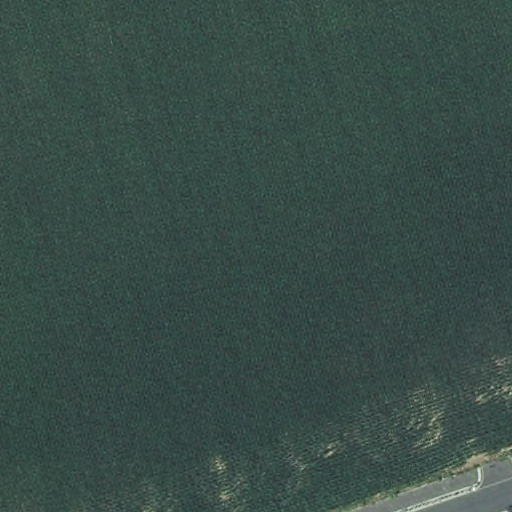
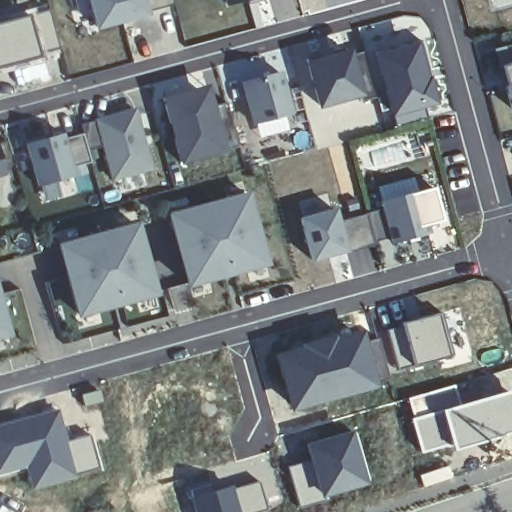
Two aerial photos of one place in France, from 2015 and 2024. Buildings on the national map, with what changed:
new [(97,28),(89,0),(173,0),(175,6),(97,28)]
new [(225,0),(239,0),(226,4),(225,0)]
new [(60,51),(0,66),(0,26),(50,13),(60,51)]
new [(420,34),(438,104),(390,118),(372,50),(420,34)]
new [(495,51),(495,50),(512,45),(512,76),(504,48),(495,51)]
new [(354,48),(367,98),(320,110),(308,60),(354,48)]
new [(252,125),(240,82),(281,70),(293,114),(252,125)]
new [(224,151),(179,164),(160,97),(208,86),(213,106),(227,104),(237,146),(224,151)]
new [(506,87),(512,86),(512,109),(506,87)]
new [(87,151),(80,126),(94,121),(93,119),(135,109),(152,171),(110,182),(100,146),(87,151)]
new [(71,176),(37,186),(26,145),(61,135),(71,176)]
new [(0,152),(6,175),(0,176),(0,152)]
new [(248,190),(269,265),(187,287),(166,214),(248,190)]
new [(367,213),(380,210),(377,202),(418,192),(430,233),(389,243),(387,239),(374,242),(367,213)]
new [(332,194),(340,222),(367,213),(374,242),(312,260),(298,204),(332,194)]
new [(139,220),(158,295),(75,318),(55,244),(139,220)]
new [(0,339),(0,295),(12,336),(0,339)]
new [(435,312),(447,356),(412,365),(395,369),(382,330),(399,324),(435,312)]
new [(325,334),(363,326),(367,340),(380,337),(389,378),(349,395),(290,411),(272,353),(325,334)]
new [(454,384),(459,403),(409,418),(405,397),(454,384)]
new [(459,403),(512,388),(512,432),(483,443),(450,451),(449,446),(419,453),(409,418),(459,403)]
new [(101,391),(104,402),(85,406),(82,396),(101,391)]
new [(75,477),(30,490),(24,468),(0,474),(0,423),(59,408),(67,439),(90,433),(100,470),(75,477)]
new [(301,443),(349,428),(365,484),(320,499),(297,507),(285,466),(306,460),(301,443)]
new [(232,487),(257,481),(265,508),(252,512),(194,512),(188,492),(231,484),(232,487)]

